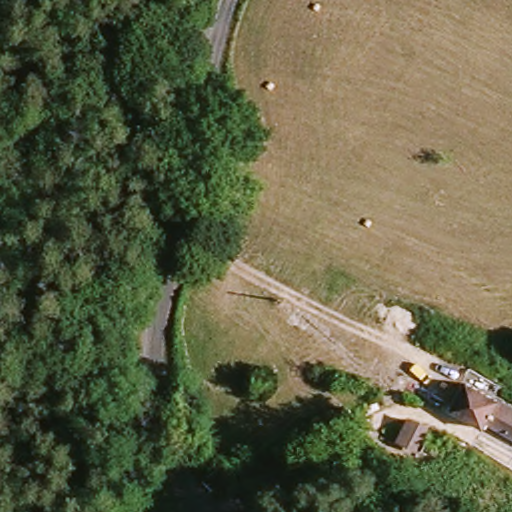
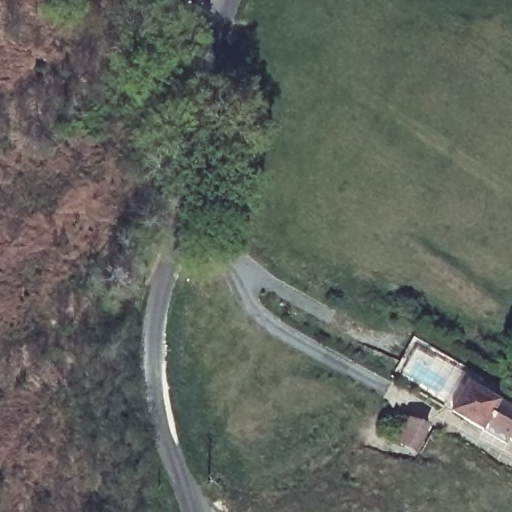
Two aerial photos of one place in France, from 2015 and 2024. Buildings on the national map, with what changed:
unchanged [(460,415),(478,387),(512,409),(512,448),(460,415)]
unchanged [(412,457),(401,446),(404,435),(419,440),(412,457)]

